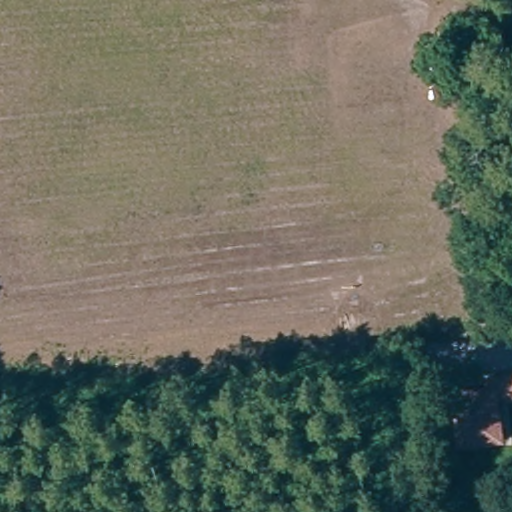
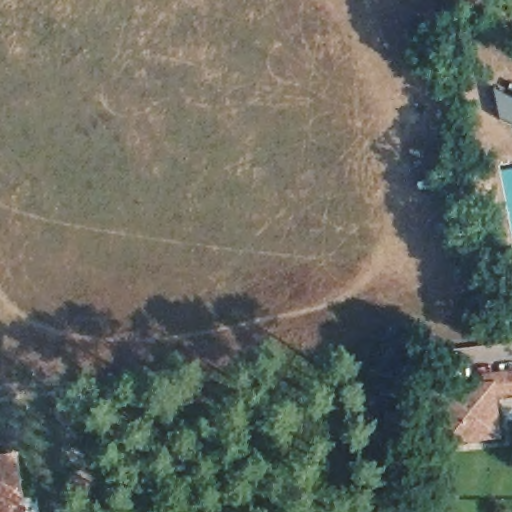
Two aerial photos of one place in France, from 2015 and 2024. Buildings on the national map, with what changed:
new [(495,88),(512,95),(512,124),(499,119),(495,88)]
new [(512,279),(512,302),(508,280),(512,279)]
unchanged [(430,424),(426,391),(444,390),(493,384),(492,375),(512,374),(512,391),(493,393),(498,437),(430,444),(430,424)]
new [(18,451),(27,501),(28,512),(0,512),(0,453),(18,451)]

